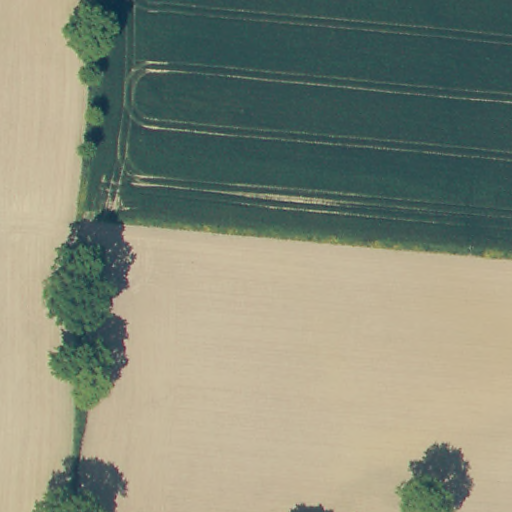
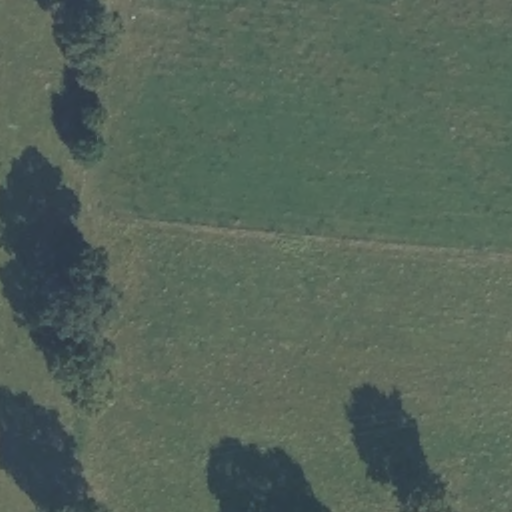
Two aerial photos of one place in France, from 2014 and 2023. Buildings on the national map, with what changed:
[]

